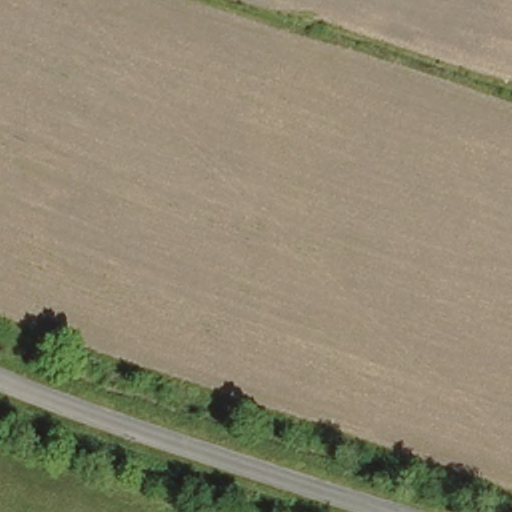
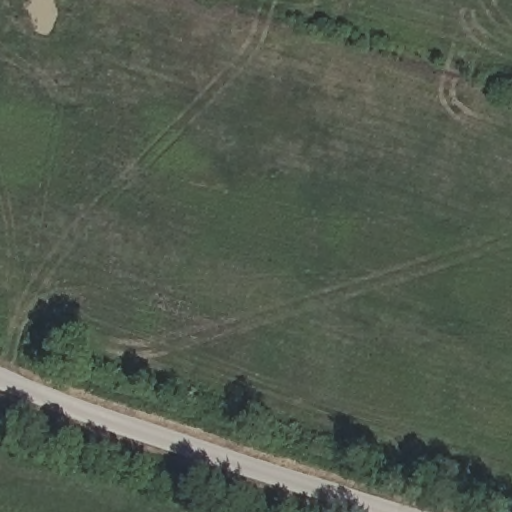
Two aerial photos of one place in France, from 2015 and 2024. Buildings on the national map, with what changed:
[]

